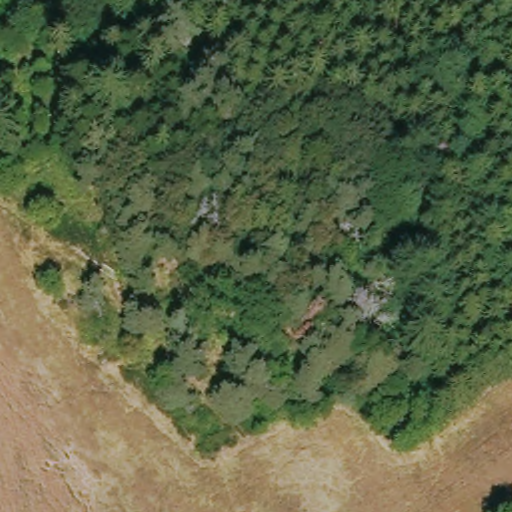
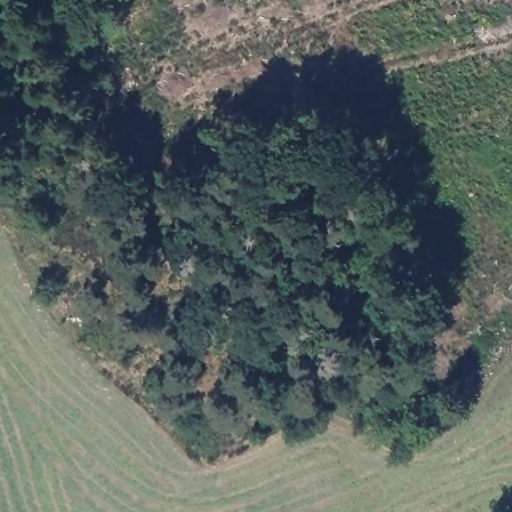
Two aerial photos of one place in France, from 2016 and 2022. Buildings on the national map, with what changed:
[]

